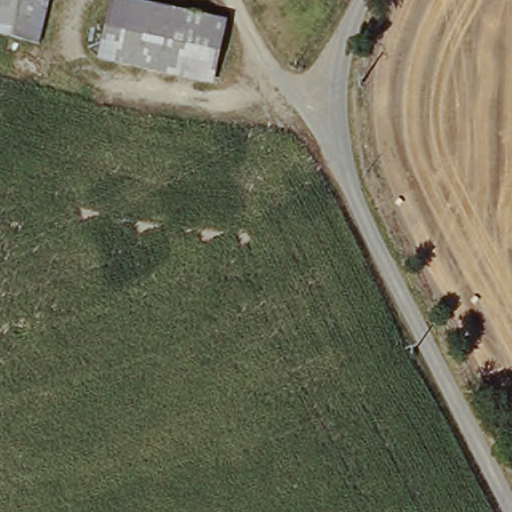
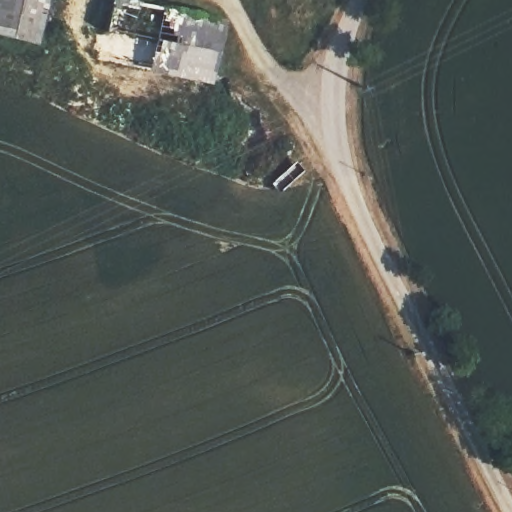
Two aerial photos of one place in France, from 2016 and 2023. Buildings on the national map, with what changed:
unchanged [(0,35),(0,0),(54,0),(43,43),(0,35)]
unchanged [(106,30),(89,25),(95,0),(111,0),(225,31),(211,88),(98,67),(106,30)]

